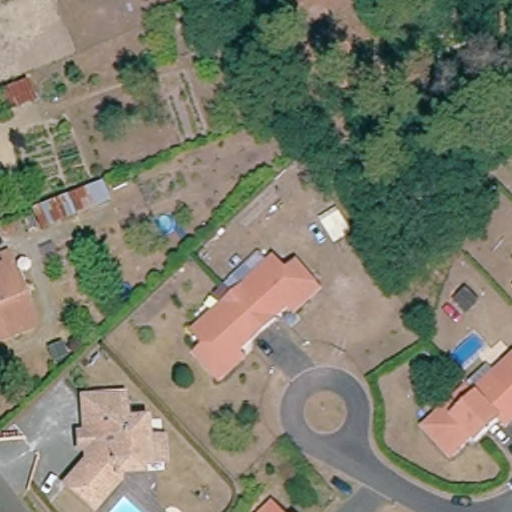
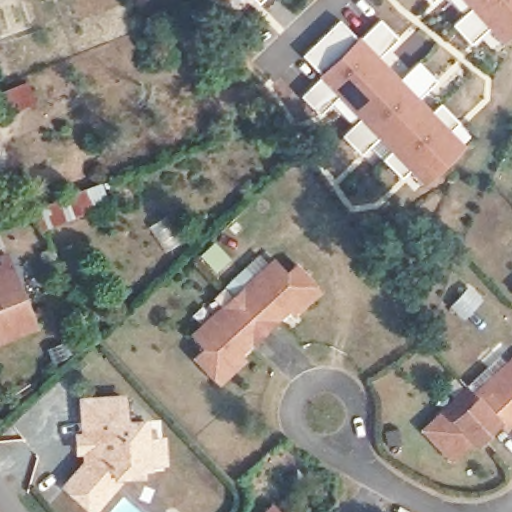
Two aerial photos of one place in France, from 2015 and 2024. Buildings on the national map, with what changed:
new [(255,0),(262,0),(258,3),(255,0)]
new [(430,0),(435,0),(432,2),(430,0)]
new [(491,27),(472,44),(455,24),(472,8),(466,0),(512,0),(512,35),(504,41),(491,27)]
new [(425,184),(412,169),(403,178),(385,158),(394,151),(380,136),(362,153),(343,133),(360,117),(341,95),(322,112),(307,95),(327,78),(321,72),(305,54),(341,20),(357,36),(360,34),(362,36),(381,18),(401,38),(381,55),(402,78),(419,61),(438,80),(421,96),(434,109),(442,102),(461,122),(452,130),(467,145),(425,184)]
unchanged [(30,101),(3,112),(0,106),(0,87),(21,79),(30,101)]
unchanged [(102,205),(34,231),(25,207),(93,180),(102,205)]
unchanged [(33,324),(0,335),(0,256),(7,253),(33,324)]
unchanged [(268,254),(281,268),(291,259),(315,286),(289,309),(284,303),(235,348),(240,354),(214,377),(190,351),(200,342),(187,328),(268,254)]
unchanged [(511,288),(512,287),(512,290),(511,288)]
unchanged [(416,426),(446,399),(461,386),(467,393),(472,388),(508,357),(512,361),(512,415),(497,428),(492,421),(471,440),(469,441),(466,438),(445,456),(443,457),(416,426)]
unchanged [(122,423),(140,421),(141,440),(152,440),(154,458),(154,462),(143,463),(113,466),(115,480),(87,512),(85,512),(59,490),(83,462),(82,446),(74,447),(72,433),(81,432),(79,413),(79,400),(97,397),(101,396),(120,394),(122,423)]
unchanged [(274,512),(259,512),(267,504),(274,512)]

